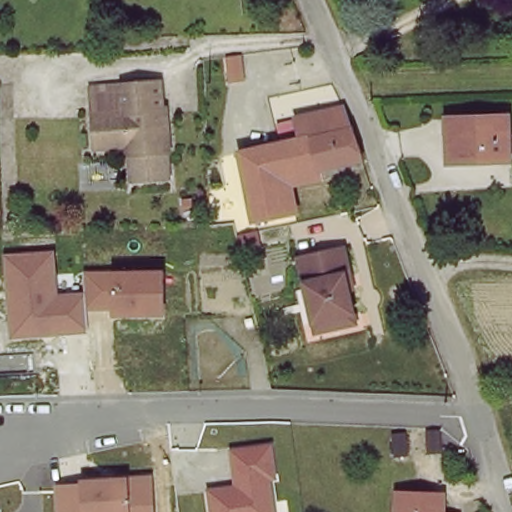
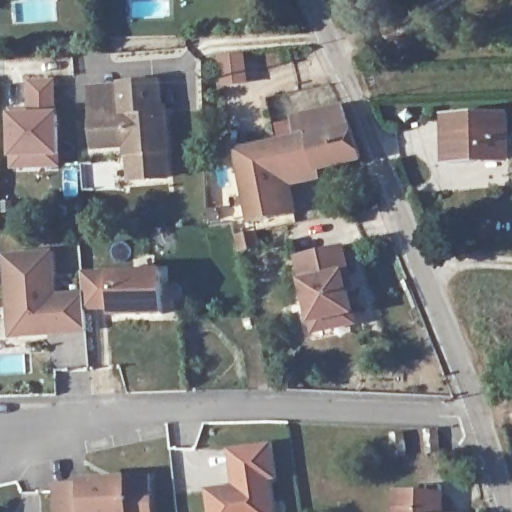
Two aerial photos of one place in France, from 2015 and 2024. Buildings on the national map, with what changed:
new [(13,153),(11,114),(11,109),(30,108),(30,113),(30,80),(51,79),(53,113),(55,113),(57,163),(32,163),(13,164),(13,153)]
unchanged [(132,143),(96,148),(92,113),(89,87),(121,84),(159,81),(162,108),(166,107),(166,115),(170,149),(167,149),(170,176),(138,179),(136,153),(133,153),(133,146),(132,143)]
unchanged [(281,190),(286,215),(255,222),(241,152),(276,145),(271,123),(295,118),(344,108),(347,118),(356,143),(362,159),(326,168),(329,180),(281,190)]
unchanged [(505,159),(450,160),(449,121),(505,120),(505,159)]
unchanged [(349,199),(350,205),(344,206),(343,200),(349,199)]
unchanged [(316,334),(314,324),(306,289),(299,259),(345,249),(351,273),(354,290),(350,291),(355,314),(357,325),(316,334)]
unchanged [(1,258),(53,254),(55,294),(81,293),(83,271),(113,272),(164,271),(165,315),(110,315),(85,313),(85,336),(8,340),(1,258)]
unchanged [(425,432),(439,431),(442,454),(427,455),(425,432)]
unchanged [(393,458),(390,434),(405,433),(407,457),(393,458)]
unchanged [(205,489),(231,486),(228,450),(271,446),(276,482),(271,482),(274,512),(208,512),(205,489)]
unchanged [(53,487),(81,484),(82,481),(130,479),(151,477),(153,512),(54,512),(53,487)]
unchanged [(391,493),(439,494),(439,512),(390,512),(391,493)]

